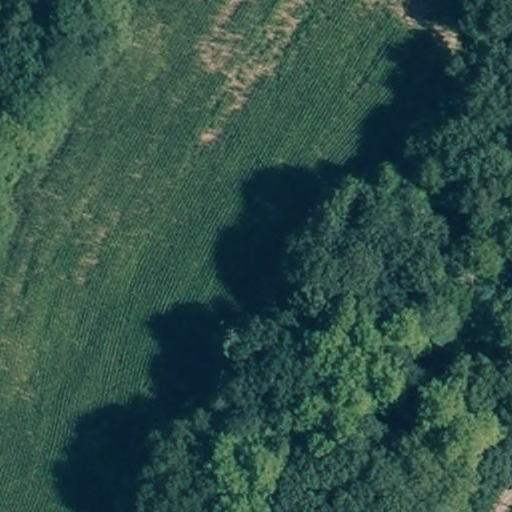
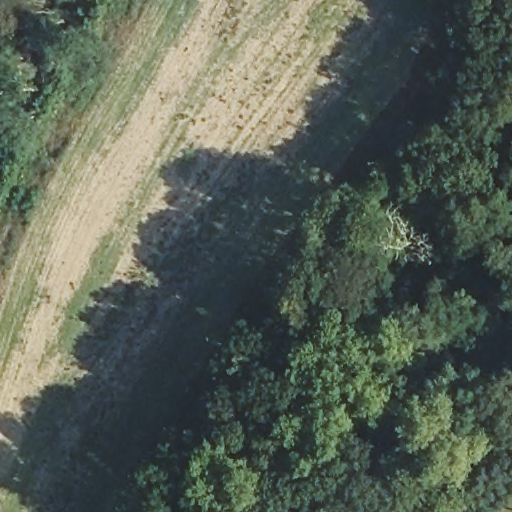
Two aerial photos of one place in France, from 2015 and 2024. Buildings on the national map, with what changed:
[]

